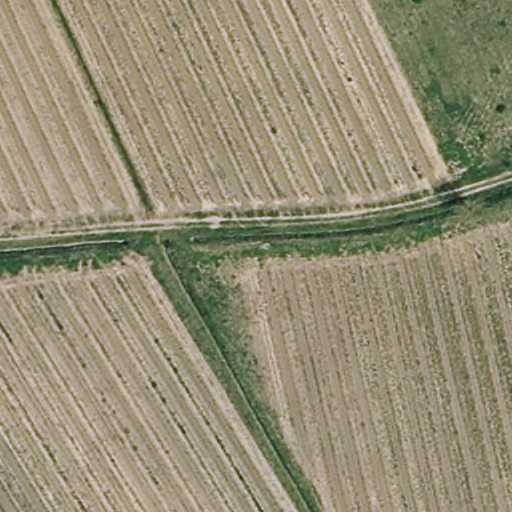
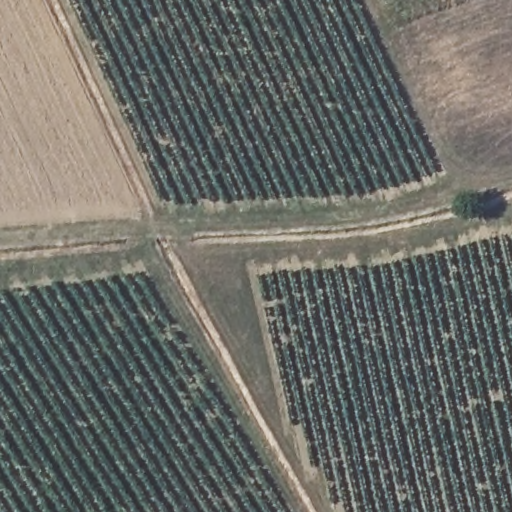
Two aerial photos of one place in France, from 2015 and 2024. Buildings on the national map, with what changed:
[]

